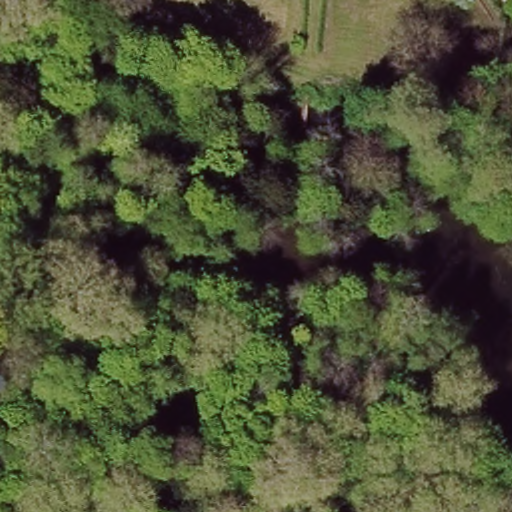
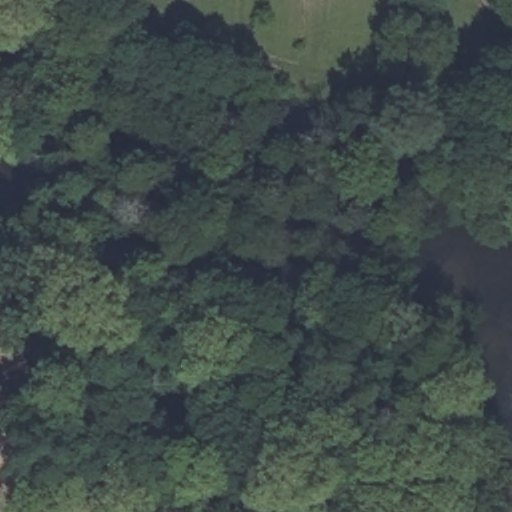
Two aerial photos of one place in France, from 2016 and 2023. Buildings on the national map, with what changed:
unchanged [(512,499),(512,511),(511,511),(512,499)]
unchanged [(354,508),(355,512),(339,512),(354,508)]

